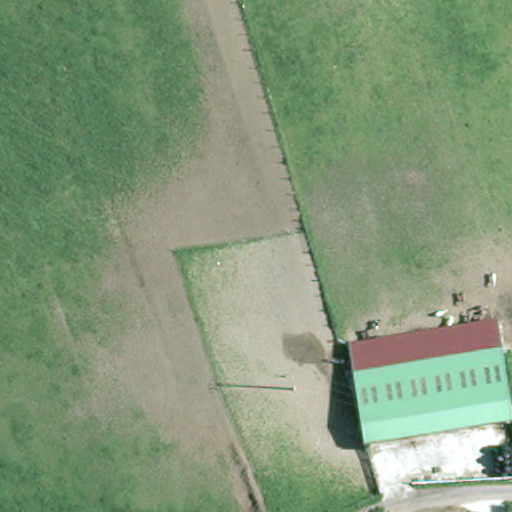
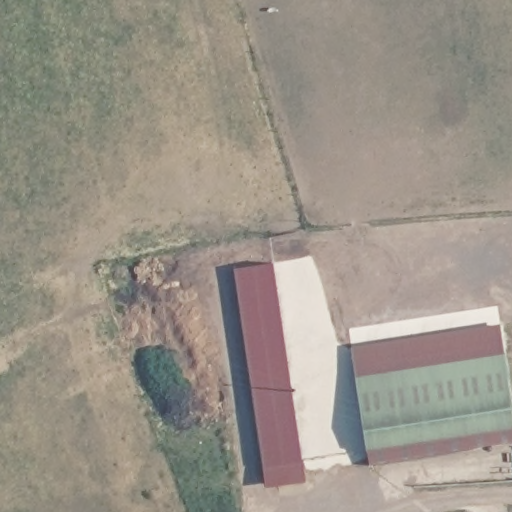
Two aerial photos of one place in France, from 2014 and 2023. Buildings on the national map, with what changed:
new [(235,269),(276,265),(303,464),(265,470),(235,269)]
unchanged [(512,414),(512,427),(365,449),(348,348),(497,326),(512,414)]

